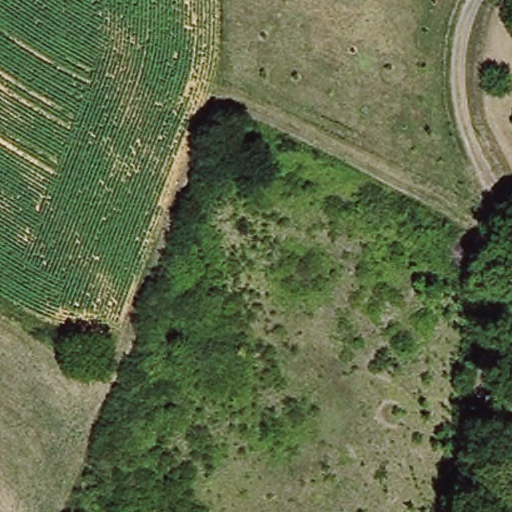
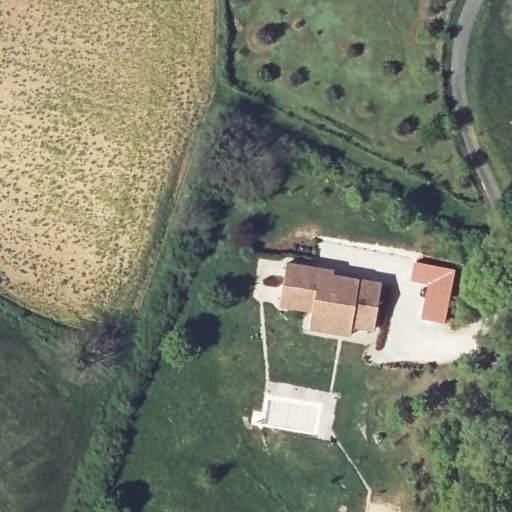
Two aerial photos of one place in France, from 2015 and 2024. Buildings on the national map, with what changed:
new [(335,268),(334,274),(382,283),(375,331),(353,328),(351,338),(309,330),(312,310),(280,304),(287,262),(335,268)]
new [(447,323),(423,318),(430,283),(418,280),(422,262),(456,269),(447,323)]

